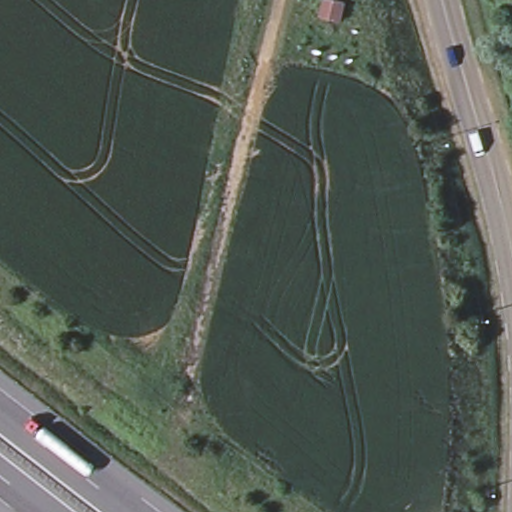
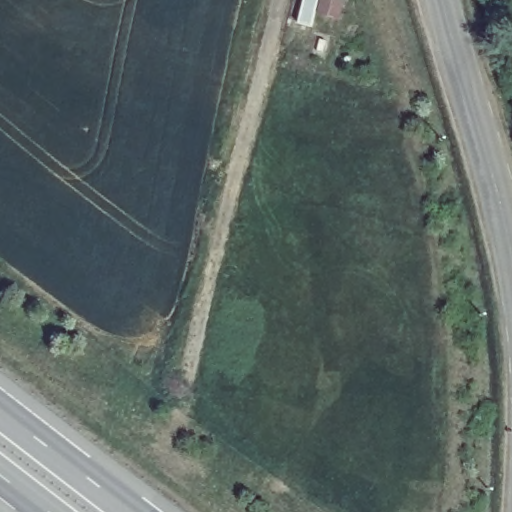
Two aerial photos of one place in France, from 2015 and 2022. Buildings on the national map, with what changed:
unchanged [(340,18),(319,14),(323,0),(343,0),(340,18)]

